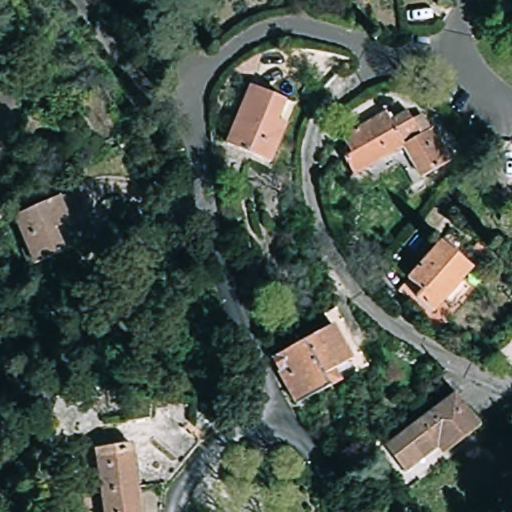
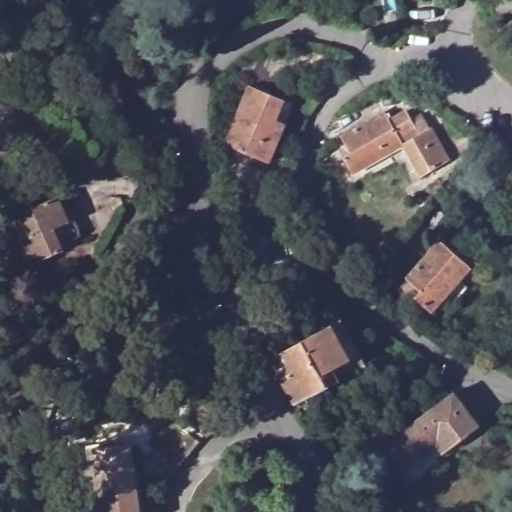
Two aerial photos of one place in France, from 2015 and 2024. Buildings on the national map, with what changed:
unchanged [(499,15),(493,0),(512,0),(512,11),(499,15)]
unchanged [(294,104),(269,162),(226,144),(249,85),(294,104)]
unchanged [(414,118),(424,112),(431,124),(432,123),(451,154),(421,170),(404,140),(353,169),(343,153),(351,148),(341,132),(385,106),(391,115),(407,106),(414,118)]
unchanged [(69,223),(54,229),(63,251),(33,264),(14,216),(58,197),(69,223)]
unchanged [(472,262),(460,275),(468,283),(452,301),(444,294),(433,307),(414,292),(411,296),(399,284),(409,274),(407,274),(441,235),(472,262)]
unchanged [(264,359),(326,324),(321,314),(330,309),(361,366),(336,380),(289,406),(264,359)]
unchanged [(479,421),(442,449),(436,442),(404,466),(386,441),(454,388),(479,421)]
unchanged [(181,465),(163,449),(182,429),(199,444),(181,465)]
unchanged [(81,467),(95,464),(93,449),(100,449),(136,444),(142,487),(139,487),(106,491),(85,493),(81,467)]
unchanged [(145,512),(109,512),(106,491),(139,487),(142,487),(145,512)]

